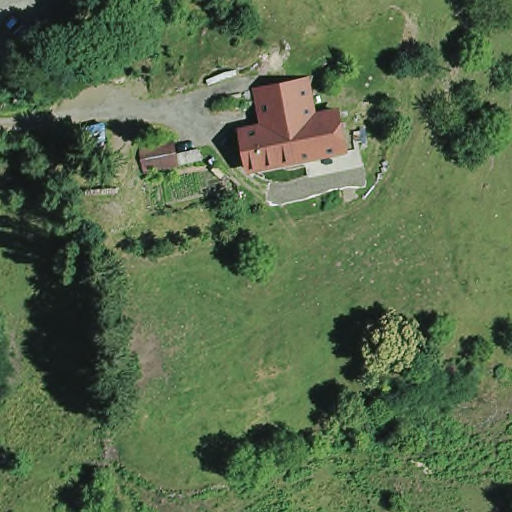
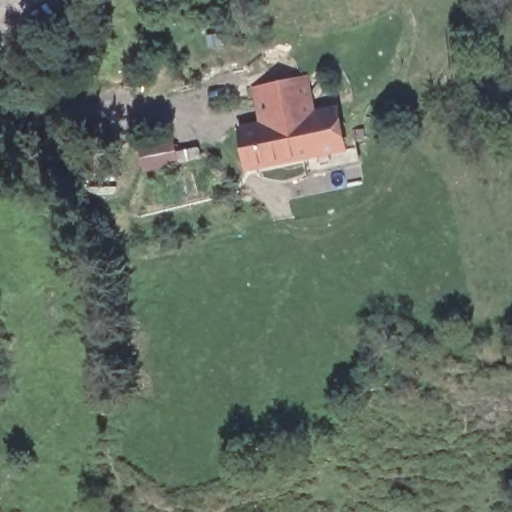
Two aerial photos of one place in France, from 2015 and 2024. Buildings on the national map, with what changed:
unchanged [(257,104),(304,94),(312,128),(292,133),(265,139),(257,104)]
unchanged [(335,124),(343,162),(300,172),(292,133),(312,128),(335,124)]
unchanged [(354,129),(364,128),(365,137),(354,138),(354,129)]
unchanged [(241,144),(257,141),(265,139),(292,133),(300,172),(265,179),(249,183),(241,144)]

